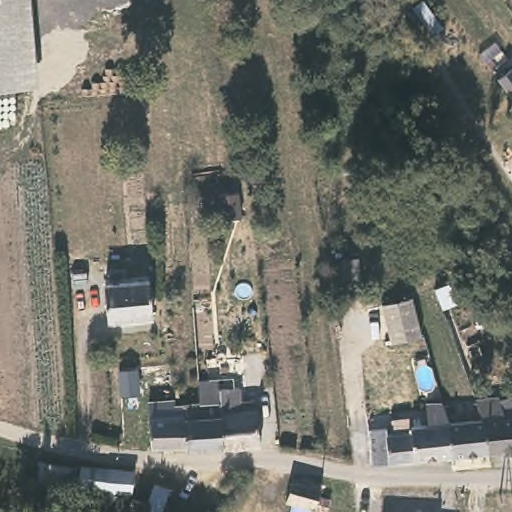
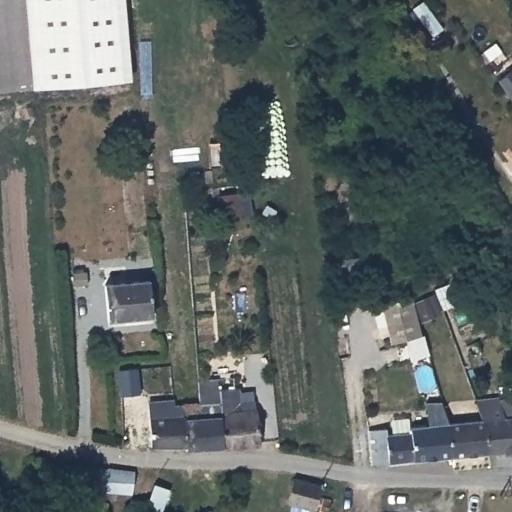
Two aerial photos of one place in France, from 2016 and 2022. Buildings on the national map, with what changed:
unchanged [(38,86),(0,89),(0,0),(30,0),(38,86)]
new [(31,0),(125,0),(132,79),(38,86),(31,0)]
unchanged [(512,99),(499,82),(512,73),(512,99)]
unchanged [(415,129),(406,134),(402,125),(412,121),(415,129)]
unchanged [(150,318),(104,321),(101,284),(147,280),(150,318)]
unchanged [(457,280),(463,301),(424,313),(417,293),(457,280)]
unchanged [(421,336),(390,343),(383,303),(411,297),(421,336)]
unchanged [(485,342),(476,345),(472,332),(480,328),(485,342)]
unchanged [(194,392),(235,391),(236,404),(252,403),(253,414),(254,413),(258,449),(220,451),(214,401),(195,402),(194,392)]
unchanged [(501,400),(512,398),(512,452),(491,453),(487,419),(479,399),(500,396),(501,400)]
unchanged [(214,401),(220,451),(187,453),(187,450),(183,419),(181,402),(195,402),(214,401)]
unchanged [(187,450),(148,452),(146,421),(183,419),(187,450)]
unchanged [(394,461),(370,460),(366,421),(387,419),(387,425),(449,421),(451,421),(455,456),(394,461)]
unchanged [(487,419),(491,453),(455,456),(451,421),(487,419)]
unchanged [(126,471),(132,472),(130,489),(102,487),(78,486),(80,466),(87,467),(98,468),(104,469),(110,470),(126,471)]
unchanged [(324,475),(318,499),(290,491),(296,468),(324,475)]
unchanged [(159,512),(144,512),(150,484),(165,489),(159,512)]
unchanged [(380,512),(380,510),(401,512),(380,512)]

